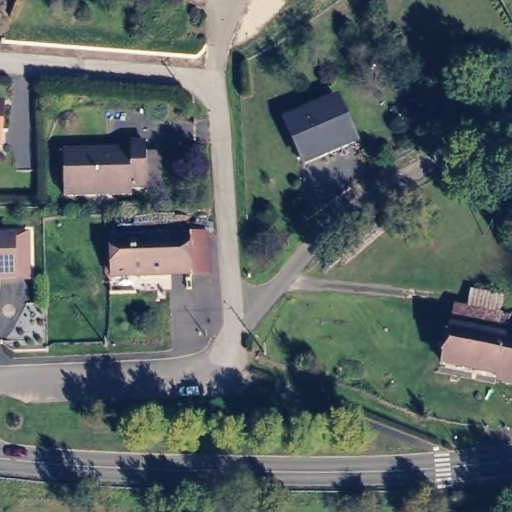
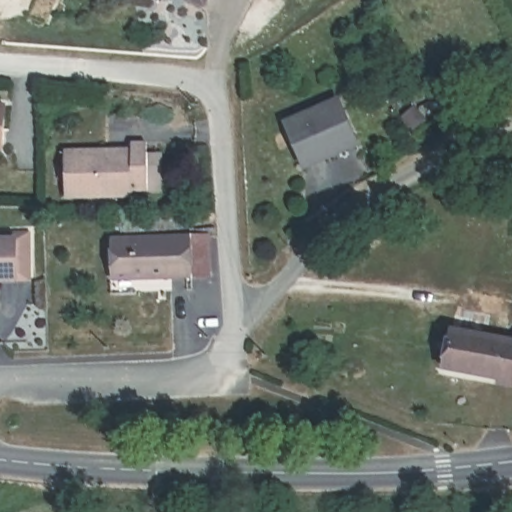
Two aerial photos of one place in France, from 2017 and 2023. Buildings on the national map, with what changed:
unchanged [(7,100),(8,145),(0,145),(0,100),(7,100)]
unchanged [(339,101),(358,143),(305,168),(286,126),(339,101)]
unchanged [(130,141),(145,141),(145,149),(159,149),(159,179),(146,179),(147,189),(130,189),(130,194),(63,194),(64,148),(129,149),(130,141)]
unchanged [(187,234),(187,270),(112,271),(112,233),(187,234)]
unchanged [(32,234),(33,278),(13,277),(12,242),(0,242),(0,234),(32,234)]
unchanged [(12,242),(13,277),(0,277),(0,242),(12,242)]
unchanged [(463,307),(467,288),(500,294),(497,317),(512,319),(512,346),(448,331),(453,307),(463,307)]
unchanged [(512,381),(439,364),(448,331),(512,346),(512,381)]

